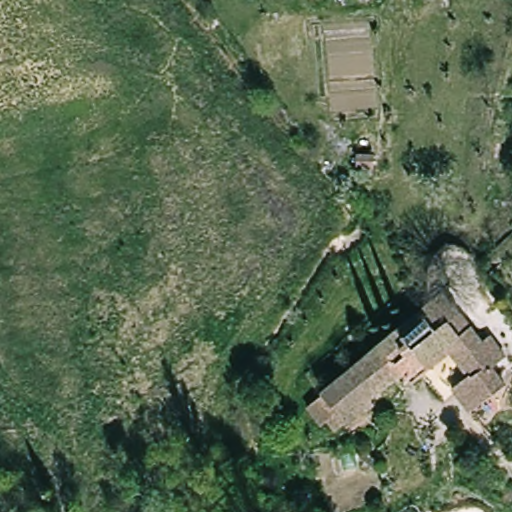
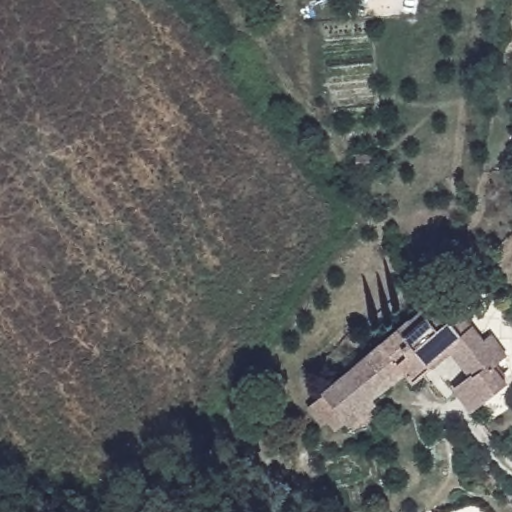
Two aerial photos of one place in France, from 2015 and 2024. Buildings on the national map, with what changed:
unchanged [(492,342),(496,339),(511,358),(498,368),(510,384),(482,406),(468,388),(479,380),(453,347),(431,365),(435,370),(412,388),(400,375),(374,395),(378,400),(348,425),(321,391),(448,288),(492,342)]
unchanged [(331,440),(317,422),(313,425),(300,409),(321,391),(348,425),(331,440)]

